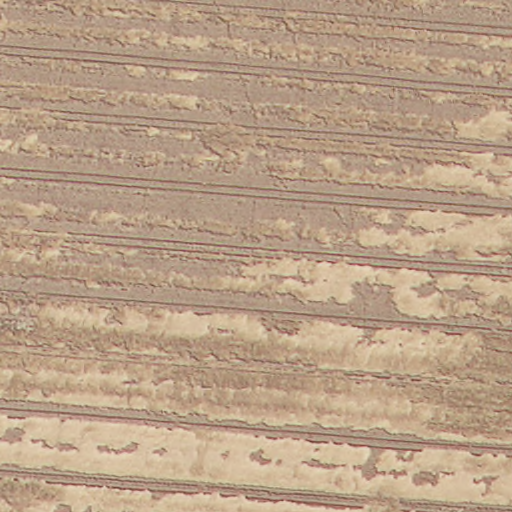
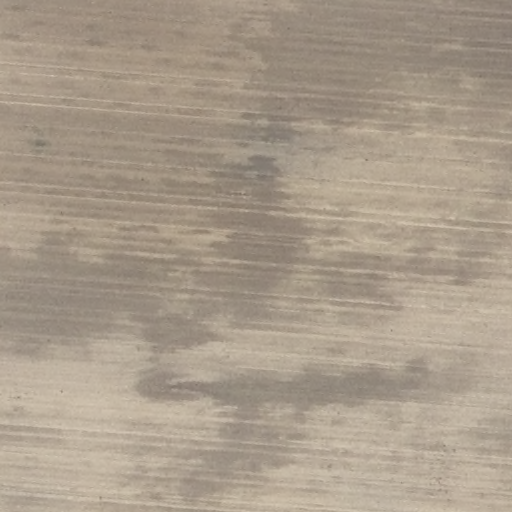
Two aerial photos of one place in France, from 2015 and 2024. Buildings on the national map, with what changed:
[]

